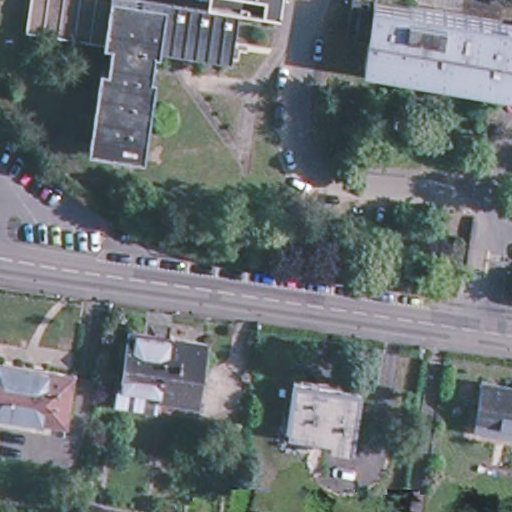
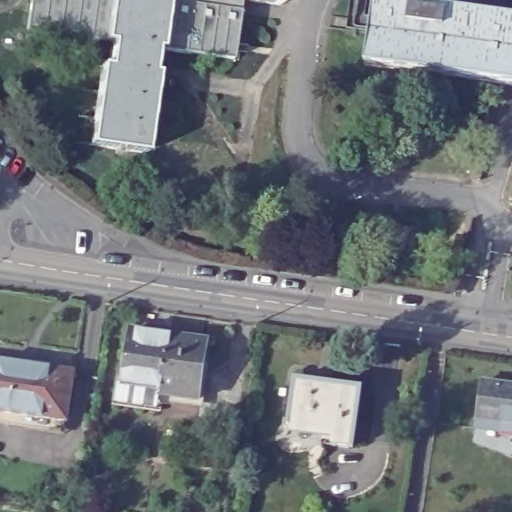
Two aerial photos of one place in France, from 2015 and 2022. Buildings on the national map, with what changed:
unchanged [(152,46),(149,70),(137,150),(96,144),(111,41),(27,31),(30,0),(239,0),(230,59),(152,46)]
unchanged [(246,1),(246,0),(279,0),(278,6),(246,1)]
unchanged [(375,1),(512,22),(512,88),(365,67),(375,1)]
unchanged [(420,252),(382,246),(385,222),(423,228),(420,252)]
unchanged [(119,386),(126,338),(202,349),(195,401),(158,395),(118,390),(119,386)]
unchanged [(0,412),(0,365),(75,376),(67,422),(0,412)]
unchanged [(352,447),(287,436),(296,379),(361,389),(352,447)]
unchanged [(512,426),(496,424),(495,431),(477,429),(483,384),(512,388),(512,426)]

